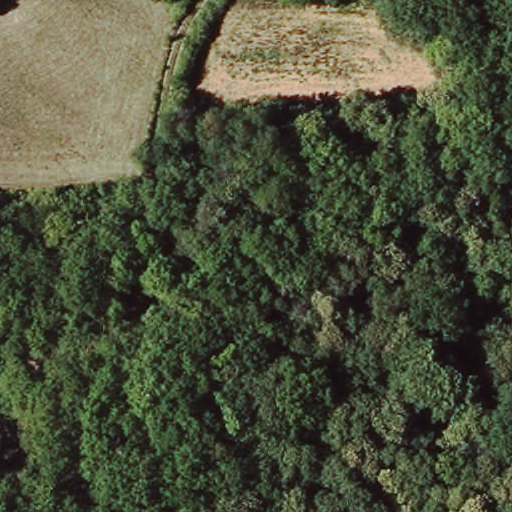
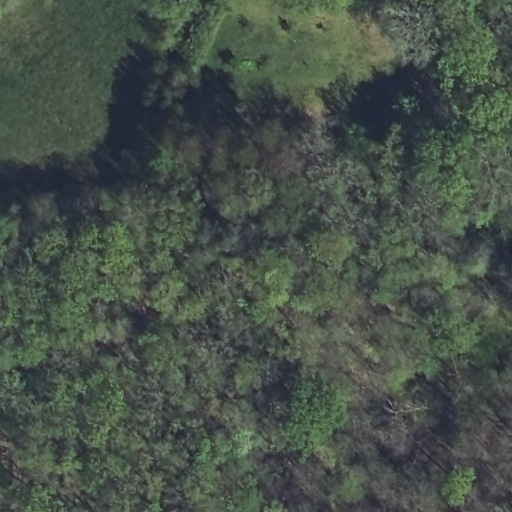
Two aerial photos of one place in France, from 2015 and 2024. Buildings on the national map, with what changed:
[]

